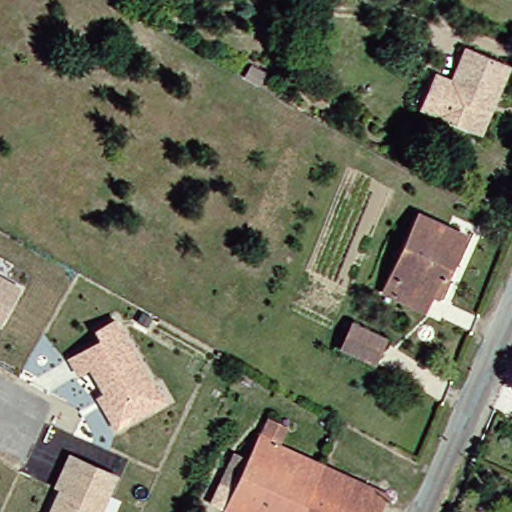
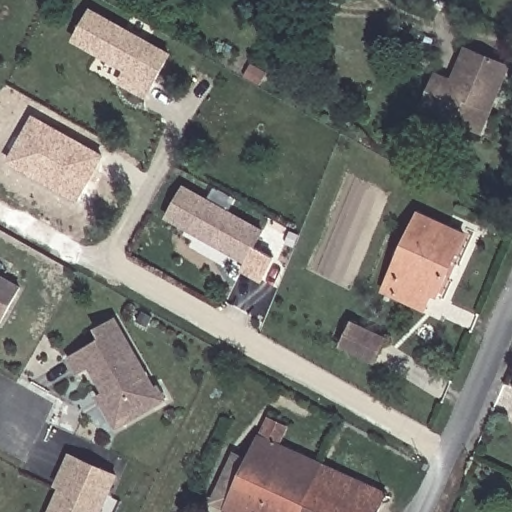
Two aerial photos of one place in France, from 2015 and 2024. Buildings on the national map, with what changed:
new [(169,55),(146,97),(119,82),(126,70),(74,41),(91,11),(169,55)]
unchanged [(486,99),(473,130),(420,108),(434,74),(451,80),(464,49),(508,67),(493,102),(486,99)]
new [(78,202),(7,161),(33,114),(106,155),(78,202)]
new [(182,187),(261,230),(245,260),(165,218),(182,187)]
unchanged [(409,215),(453,235),(426,295),(420,292),(413,308),(374,291),(409,215)]
unchanged [(18,286),(0,321),(0,277),(18,286)]
unchanged [(101,395),(108,390),(93,365),(81,372),(72,357),(105,337),(99,328),(117,317),(158,387),(161,385),(168,398),(155,405),(126,422),(120,426),(101,395)]
unchanged [(380,338),(369,361),(336,346),(346,323),(380,338)]
unchanged [(215,508),(225,488),(211,481),(224,454),(237,460),(256,419),(276,427),(268,445),(312,465),(293,506),(291,512),(223,512),(215,508)]
unchanged [(61,480),(57,478),(66,458),(112,479),(97,512),(47,512),(61,480)]
unchanged [(375,494),(367,512),(291,512),(293,506),(312,465),(375,494)]

